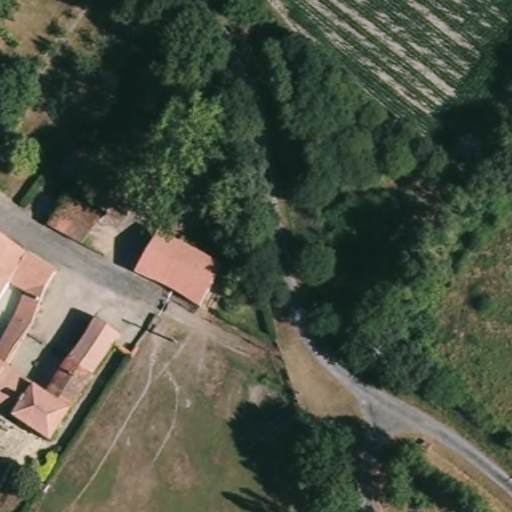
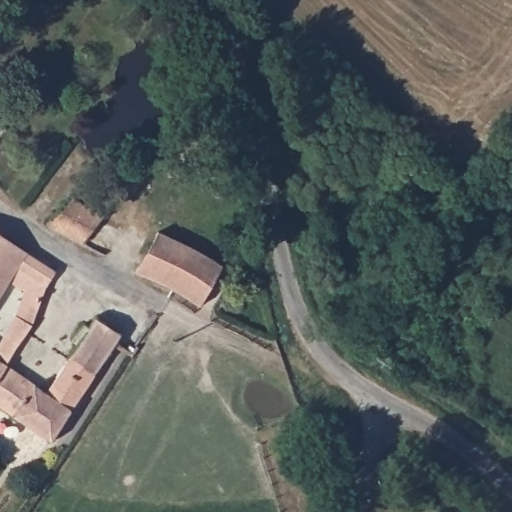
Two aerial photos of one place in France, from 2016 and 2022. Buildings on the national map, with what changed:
unchanged [(99,216),(78,243),(45,225),(65,197),(99,216)]
unchanged [(223,266),(199,306),(170,291),(136,273),(160,232),(223,266)]
unchanged [(40,295),(30,327),(6,365),(46,392),(96,319),(120,336),(49,440),(0,407),(0,340),(13,321),(24,292),(9,284),(0,297),(0,235),(55,271),(40,295)]

